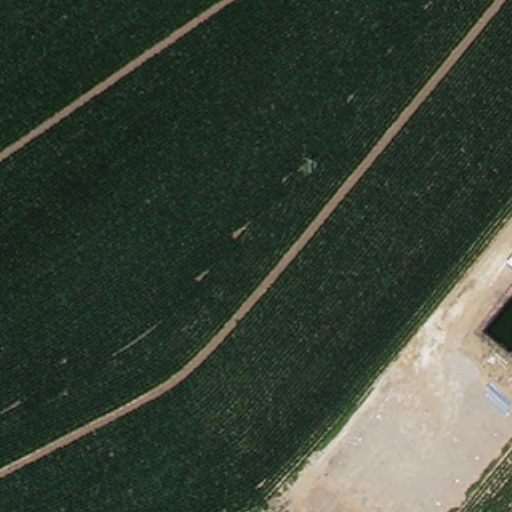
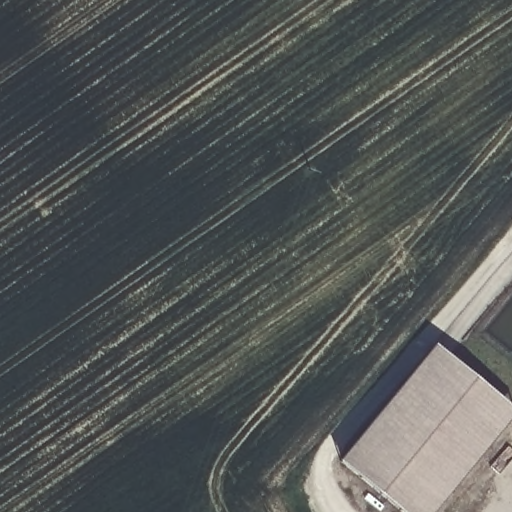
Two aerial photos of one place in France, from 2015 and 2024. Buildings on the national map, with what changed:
new [(512,415),(434,512),(400,512),(338,462),(434,345),(512,408),(512,415)]

